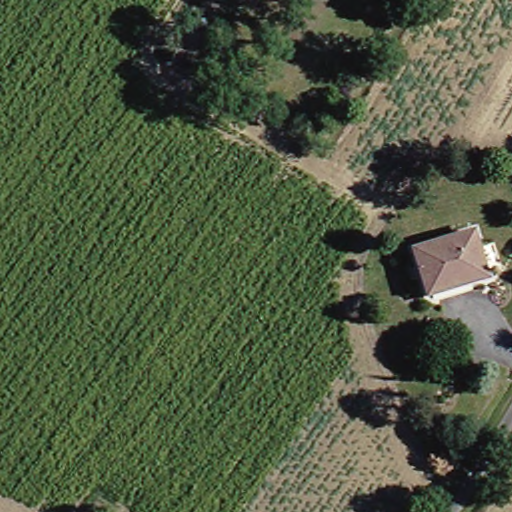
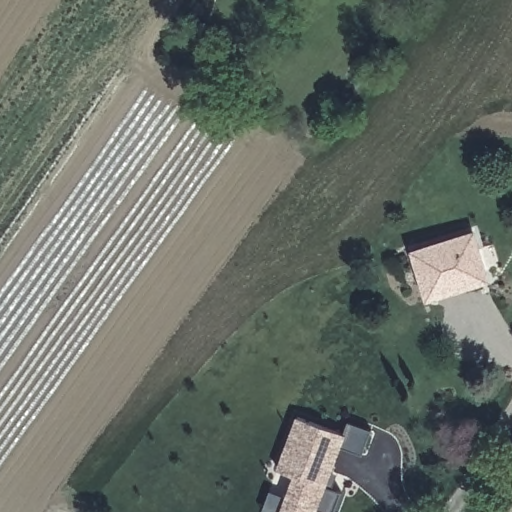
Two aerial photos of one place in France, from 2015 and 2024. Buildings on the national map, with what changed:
unchanged [(422,248),(482,228),(497,274),(477,281),(436,295),(434,289),(422,248)]
new [(268,489),(285,496),(293,475),(276,469),(296,416),(339,432),(344,419),(367,428),(358,453),(336,445),(326,470),(334,472),(328,487),(338,490),(330,512),(323,512),(316,509),(315,512),(264,512),(260,510),(268,489)]

